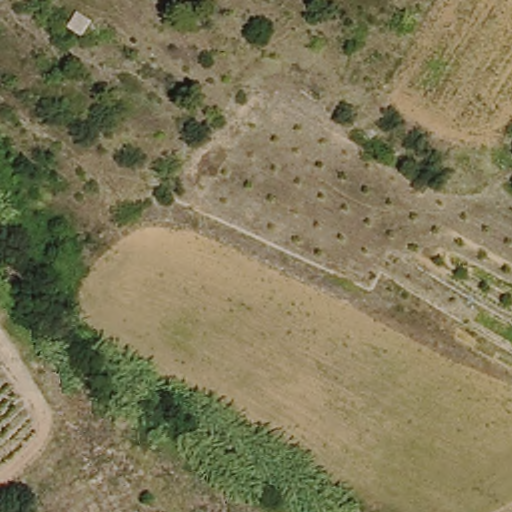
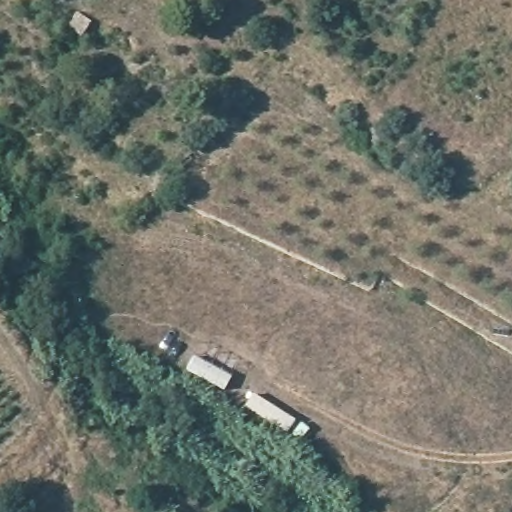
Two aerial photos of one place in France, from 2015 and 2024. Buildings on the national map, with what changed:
unchanged [(92,21),(81,38),(68,29),(79,13),(92,21)]

